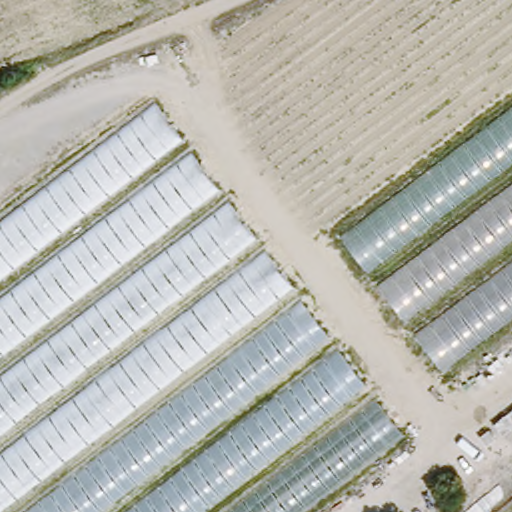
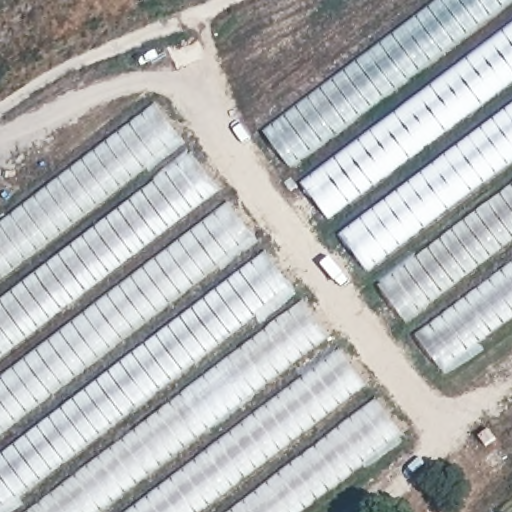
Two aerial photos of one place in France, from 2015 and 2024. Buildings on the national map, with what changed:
new [(261,128),(431,0),(507,0),(289,164),(261,128)]
new [(300,179),(512,20),(512,78),(328,217),(300,179)]
unchanged [(0,223),(157,103),(404,432),(299,512),(0,512),(0,223)]
unchanged [(443,371),(341,234),(512,105),(512,318),(443,371)]

